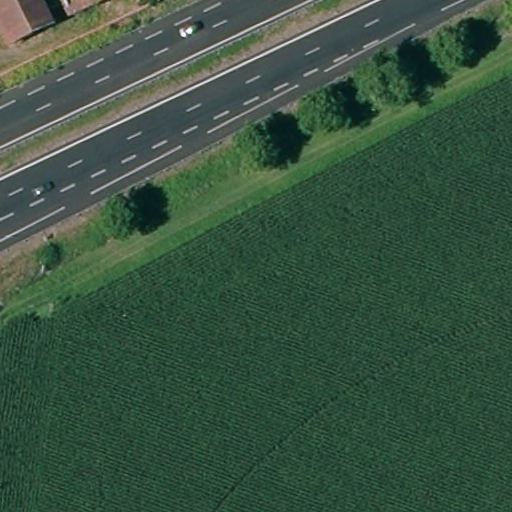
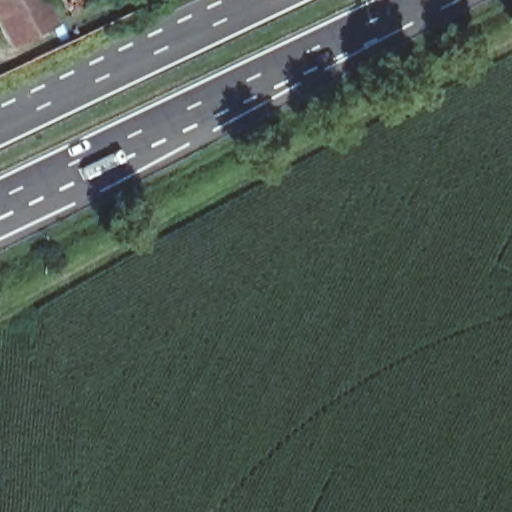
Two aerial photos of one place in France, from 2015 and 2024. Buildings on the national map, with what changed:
unchanged [(53,22),(12,43),(0,18),(0,0),(42,0),(53,22)]
unchanged [(73,14),(66,0),(101,0),(73,14)]

